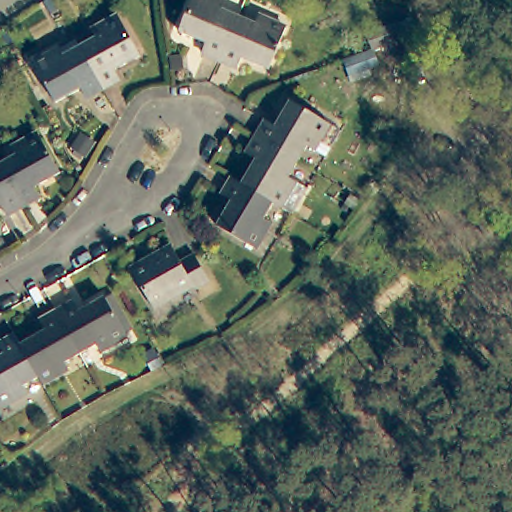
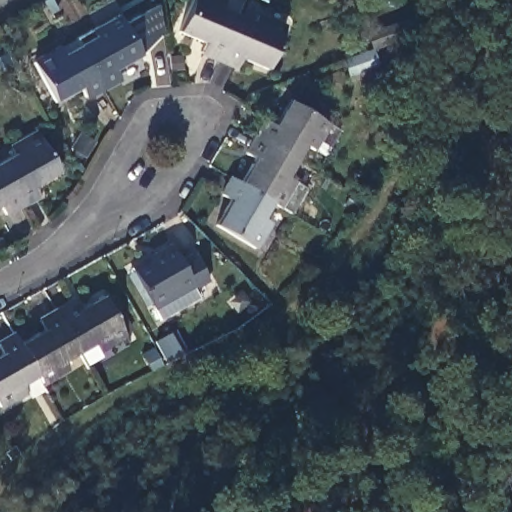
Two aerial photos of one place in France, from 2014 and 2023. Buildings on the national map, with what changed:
unchanged [(200,44),(172,33),(186,0),(209,0),(218,4),(215,11),(232,19),(213,62),(196,54),(200,44)]
unchanged [(249,25),(252,19),(280,31),(262,71),(235,60),(231,69),(213,62),(232,19),(249,25)]
unchanged [(94,44),(91,37),(117,23),(139,61),(113,76),(119,84),(101,94),(77,53),(94,44)]
unchanged [(85,103),(81,95),(55,109),(33,70),(74,47),(77,53),(101,94),(85,103)]
unchanged [(374,64),(347,73),(342,59),(369,49),(374,64)]
unchanged [(250,139),(260,121),(269,126),(284,101),(335,130),(320,156),(302,146),(293,163),(250,139)]
unchanged [(0,175),(0,163),(10,157),(6,150),(32,134),(55,175),(29,189),(34,198),(18,207),(0,175)]
unchanged [(235,186),(250,159),(242,153),(250,139),(293,163),(284,178),(302,190),(287,216),(267,204),(235,186)]
unchanged [(18,207),(2,217),(0,214),(0,175),(18,207)]
unchanged [(267,204),(260,219),(265,223),(250,248),(212,227),(226,201),(218,195),(226,181),(235,186),(267,204)]
unchanged [(171,263),(183,255),(200,283),(186,292),(183,289),(147,310),(124,271),(162,249),(171,263)]
unchanged [(94,294),(95,296),(101,293),(121,329),(115,333),(91,347),(87,342),(72,351),(49,309),(65,299),(70,308),(94,294)]
unchanged [(37,328),(32,318),(49,309),(72,351),(56,359),(60,365),(35,379),(31,374),(13,341),(37,328)]
unchanged [(15,383),(18,389),(0,399),(0,335),(7,332),(13,341),(31,374),(15,383)]

